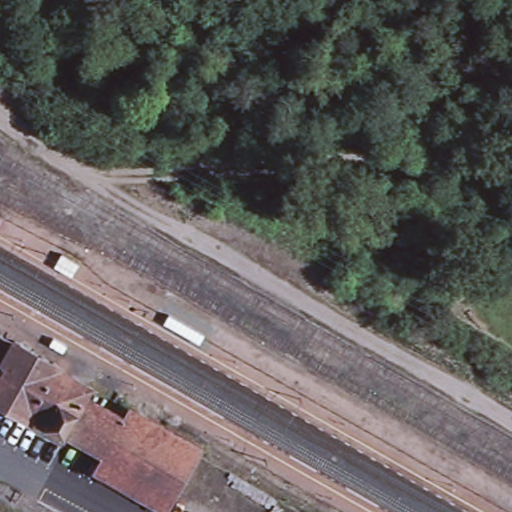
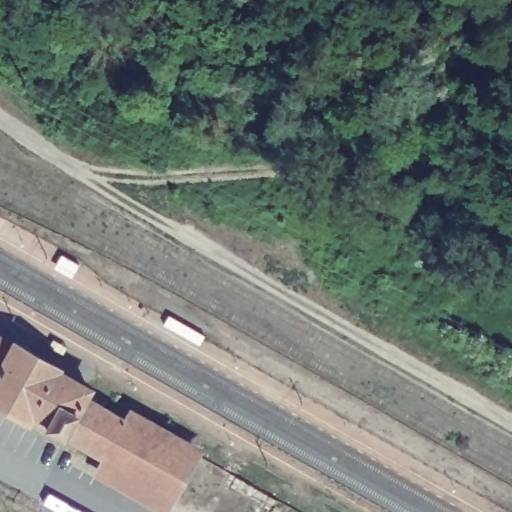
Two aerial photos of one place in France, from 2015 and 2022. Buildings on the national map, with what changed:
unchanged [(62,436),(46,427),(47,423),(32,415),(27,421),(0,404),(0,339),(11,346),(14,343),(55,367),(62,355),(96,373),(83,398),(62,436)]
unchanged [(194,461),(172,498),(104,460),(62,436),(83,398),(194,461)]
unchanged [(165,512),(163,512),(95,476),(104,460),(172,498),(165,512)]

